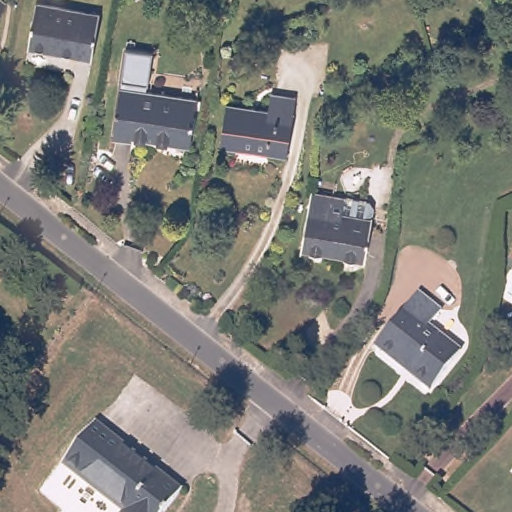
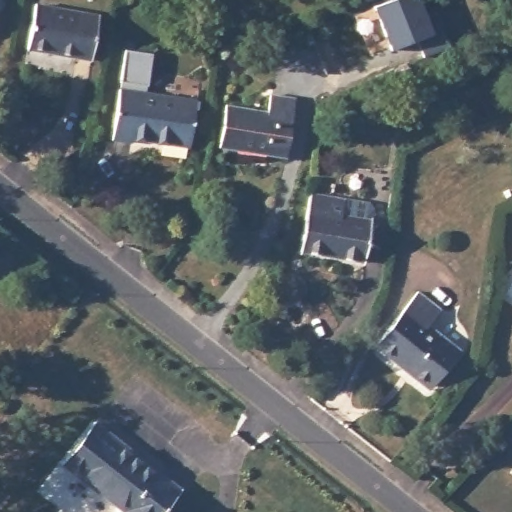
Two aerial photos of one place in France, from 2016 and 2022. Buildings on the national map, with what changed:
new [(393,0),(421,0),(426,17),(437,13),(448,44),(424,53),(418,39),(391,50),(374,7),(393,0)]
unchanged [(491,0),(504,0),(501,5),(491,0)]
unchanged [(1,2),(0,4),(0,1),(1,2)]
unchanged [(26,49),(34,4),(97,15),(90,60),(26,49)]
unchanged [(114,137),(121,88),(195,100),(188,146),(131,137),(130,140),(114,137)]
unchanged [(220,146),(227,105),(268,111),(271,95),(295,100),(286,156),(220,146)]
unchanged [(302,250),(312,193),(345,199),(342,215),(371,220),(363,261),(302,250)]
unchanged [(401,367),(376,346),(419,293),(439,310),(427,325),(458,350),(431,383),(427,387),(401,367)]
unchanged [(163,512),(122,512),(124,510),(63,461),(95,420),(107,430),(123,442),(167,476),(181,488),(171,501),(163,512)]

